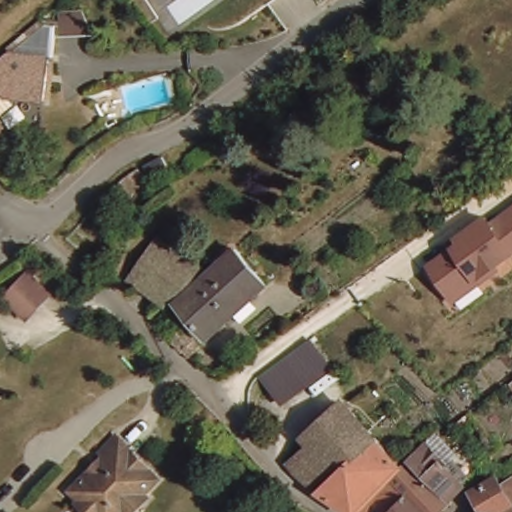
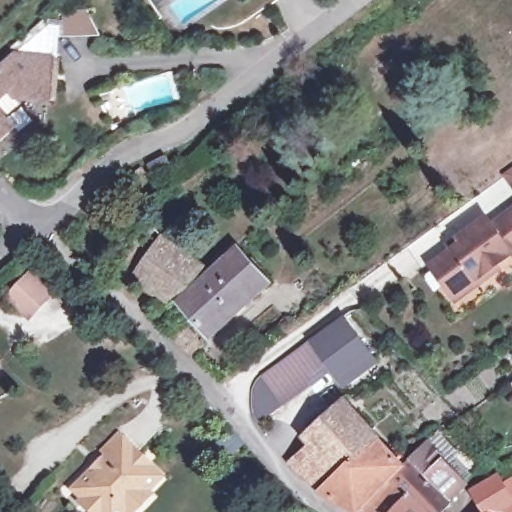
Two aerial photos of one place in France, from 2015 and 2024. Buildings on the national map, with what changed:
unchanged [(50,68),(38,109),(10,102),(7,109),(0,115),(0,64),(10,56),(50,68)]
unchanged [(100,106),(105,119),(94,123),(89,111),(100,106)]
unchanged [(149,177),(138,188),(126,177),(140,166),(149,177)]
unchanged [(117,216),(109,225),(95,212),(104,204),(117,216)]
unchanged [(456,302),(427,265),(449,249),(445,245),(486,216),(490,219),(512,205),(512,259),(456,302)]
unchanged [(206,272),(167,309),(130,283),(160,240),(206,272)]
unchanged [(270,287),(212,341),(177,305),(237,251),(270,287)]
unchanged [(28,315),(10,296),(30,276),(48,295),(28,315)]
demolished [(459,337),(452,329),(481,310),(487,318),(459,337)]
new [(344,314),(380,364),(344,390),(330,372),(334,370),(312,339),(344,314)]
unchanged [(186,328),(202,345),(190,356),(174,338),(186,328)]
unchanged [(255,418),(252,407),(252,390),(256,380),(260,376),(312,339),(334,370),(284,406),(258,424),(255,418)]
unchanged [(510,381),(512,380),(512,384),(510,381)]
unchanged [(305,442),(299,437),(339,400),(399,460),(382,477),(385,480),(354,512),(349,512),(314,490),(290,469),(284,463),(305,442)]
unchanged [(140,500),(135,505),(134,511),(132,512),(76,512),(73,509),(77,506),(65,494),(97,462),(90,455),(107,438),(114,445),(126,457),(139,469),(151,481),(137,496),(140,500)]
unchanged [(406,460),(422,442),(425,440),(444,458),(462,446),(477,464),(444,497),(406,460)]
unchanged [(406,460),(444,497),(430,512),(426,512),(387,477),(406,460)]
unchanged [(387,477),(426,512),(375,512),(372,509),(370,512),(354,512),(385,480),(387,477)]
unchanged [(504,480),(509,489),(512,487),(512,512),(491,512),(479,493),(504,480)]

